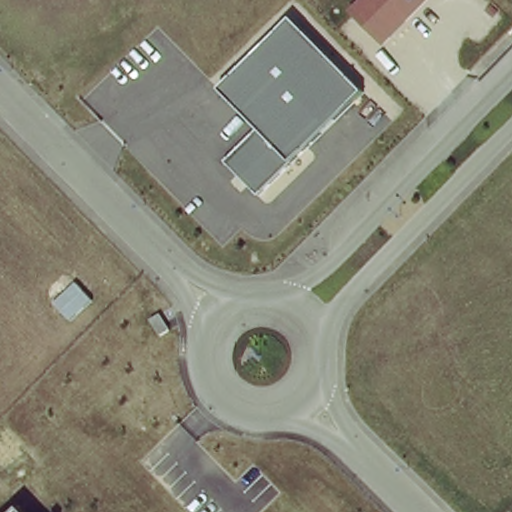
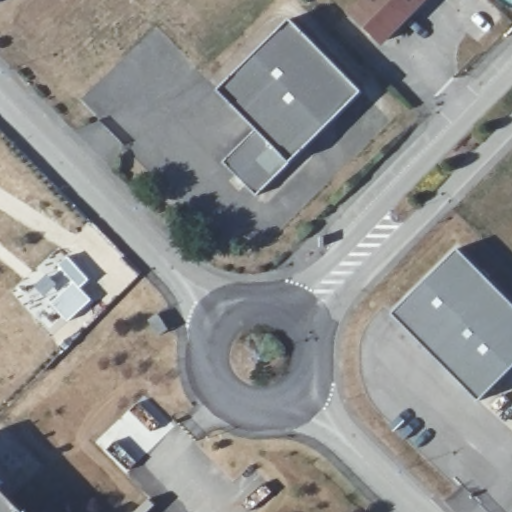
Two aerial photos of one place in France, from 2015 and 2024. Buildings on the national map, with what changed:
unchanged [(427,0),(385,42),(349,11),(360,0),(427,0)]
unchanged [(362,93),(290,163),(258,195),(225,162),(257,128),(220,90),(291,18),(362,93)]
new [(512,313),(512,370),(473,406),(386,317),(453,255),(512,313)]
new [(21,512),(0,512),(0,486),(23,509),(21,512)]
unchanged [(26,512),(21,512),(23,509),(26,512)]

